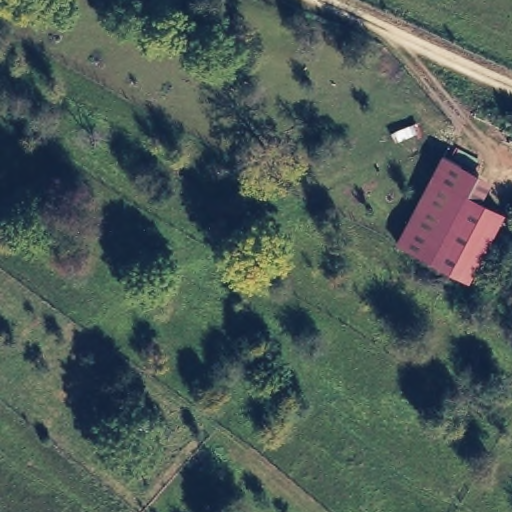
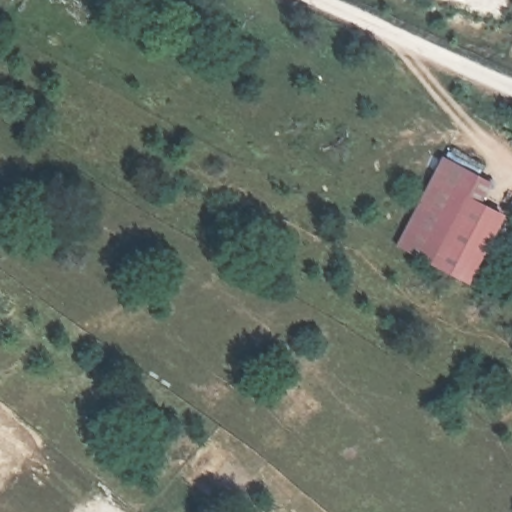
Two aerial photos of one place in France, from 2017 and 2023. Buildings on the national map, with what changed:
unchanged [(502,218),(470,283),(399,246),(444,157),(478,175),(467,200),(502,218)]

